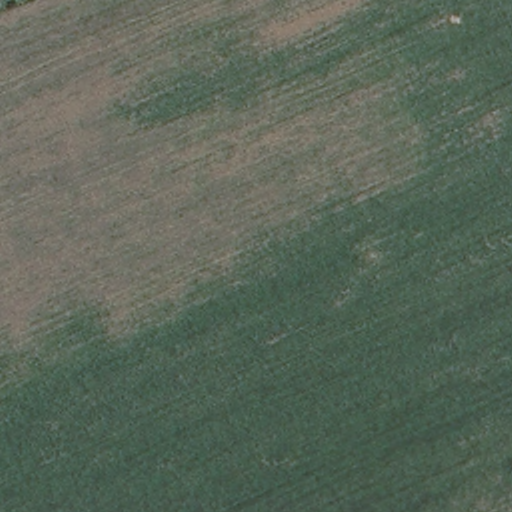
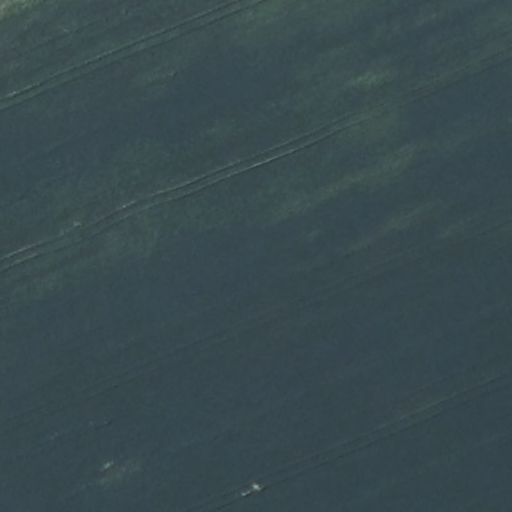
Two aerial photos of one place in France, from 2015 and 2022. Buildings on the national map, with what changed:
[]

